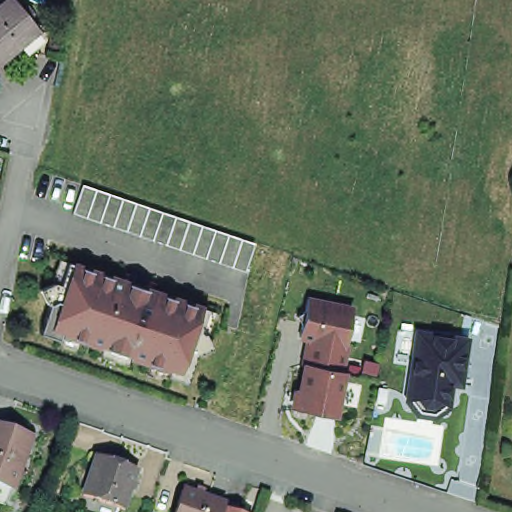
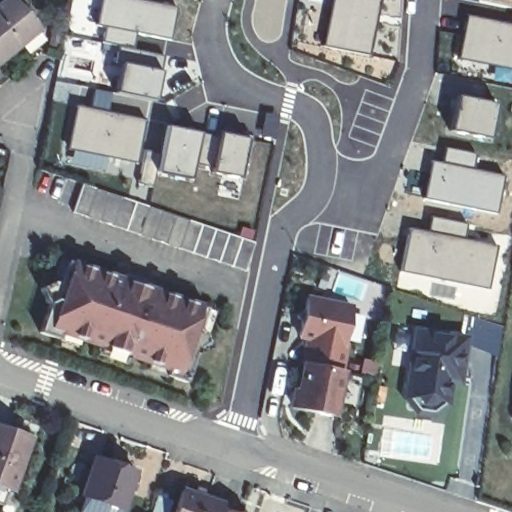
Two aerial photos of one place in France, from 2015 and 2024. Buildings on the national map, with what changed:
unchanged [(7,0),(9,0),(35,32),(0,61),(0,6),(7,0)]
new [(99,0),(95,26),(98,26),(97,38),(65,30),(72,0),(99,0)]
new [(145,0),(175,6),(168,40),(135,33),(131,51),(100,41),(102,28),(98,26),(95,26),(99,0),(145,0)]
new [(323,0),(322,3),(307,1),(307,0),(323,0)]
new [(322,45),(331,0),(379,0),(367,55),(322,45)]
new [(510,24),(512,15),(512,70),(457,58),(466,15),(510,24)]
new [(88,106),(93,88),(112,91),(113,92),(120,59),(160,68),(152,102),(146,119),(135,163),(107,157),(105,172),(69,165),(72,150),(67,149),(76,104),(88,106)]
new [(55,79),(88,85),(85,98),(70,94),(67,103),(52,100),(55,79)]
new [(455,95),(495,103),(487,139),(448,130),(455,95)]
new [(142,160),(156,163),(164,125),(215,138),(210,161),(195,158),(189,180),(154,172),(151,186),(137,183),(142,160)]
new [(210,161),(215,138),(217,131),(247,137),(238,177),(208,170),(210,161)]
new [(430,160),(440,162),(445,146),(475,154),(472,168),(503,175),(495,214),(422,198),(430,160)]
unchanged [(262,245),(252,274),(80,215),(90,187),(262,245)]
new [(408,227),(426,231),(430,216),(465,224),(462,239),(496,247),(487,289),(398,271),(408,227)]
unchanged [(202,334),(205,335),(208,336),(215,350),(201,357),(198,356),(189,385),(169,378),(172,372),(65,335),(62,342),(43,335),(52,307),(50,306),(43,292),(57,285),(63,287),(70,264),(122,281),(125,282),(128,274),(158,284),(155,293),(159,294),(210,311),(202,334)]
unchanged [(315,339),(300,336),(303,323),(298,315),(306,310),(308,297),(353,307),(345,344),(347,344),(342,371),(310,364),(315,339)]
unchanged [(446,335),(467,338),(463,362),(460,362),(460,369),(462,372),(460,383),(456,383),(451,382),(448,398),(443,397),(442,402),(433,409),(432,410),(420,408),(412,398),(412,392),(407,392),(417,331),(446,335)]
unchanged [(342,371),(345,371),(335,415),(293,407),(297,390),(301,390),(307,363),(310,364),(342,371)]
unchanged [(0,492),(0,415),(32,427),(27,443),(15,478),(11,477),(5,494),(0,492)]
unchanged [(77,512),(82,496),(79,495),(93,455),(133,470),(137,471),(130,491),(126,489),(119,509),(116,508),(114,512),(78,512),(77,512)]
unchanged [(183,493),(185,488),(205,495),(203,500),(227,508),(226,512),(177,512),(183,493)]

